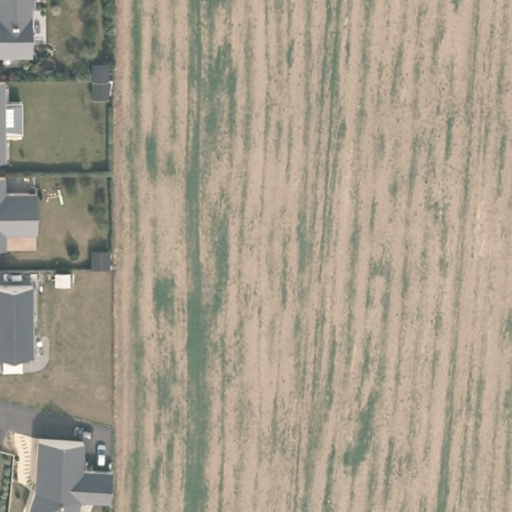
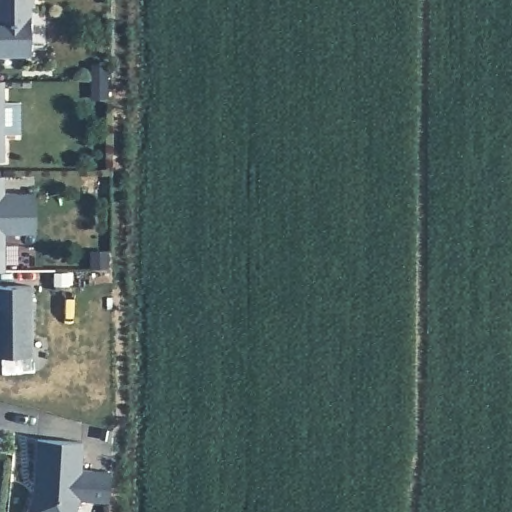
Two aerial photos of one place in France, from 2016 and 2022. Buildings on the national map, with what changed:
unchanged [(33,6),(31,6),(31,55),(0,55),(0,0),(33,0),(33,6)]
unchanged [(3,81),(4,161),(0,161),(0,81),(3,81)]
unchanged [(35,193),(36,233),(5,233),(5,248),(0,248),(0,193),(35,193)]
unchanged [(33,287),(32,356),(0,356),(0,286),(33,287)]
unchanged [(82,442),(81,470),(111,472),(109,501),(79,499),(75,512),(27,512),(35,491),(35,483),(38,439),(82,442)]

